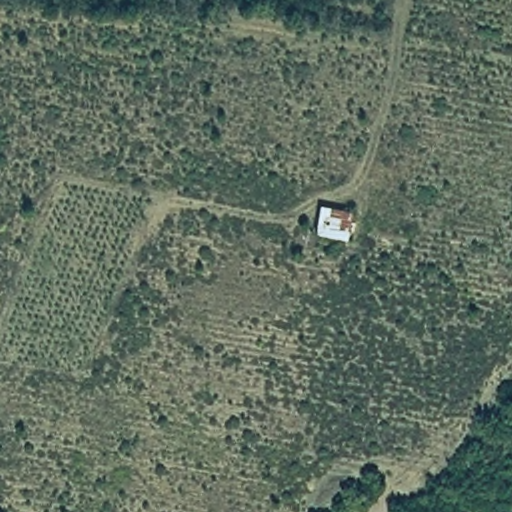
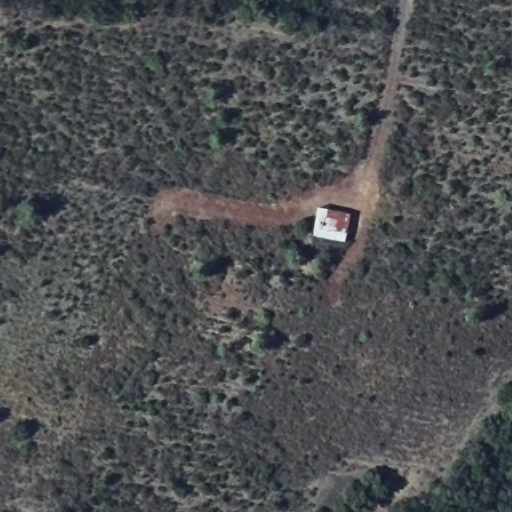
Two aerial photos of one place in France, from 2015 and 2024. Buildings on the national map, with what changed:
unchanged [(349,240),(315,235),(319,204),(351,211),(349,240)]

